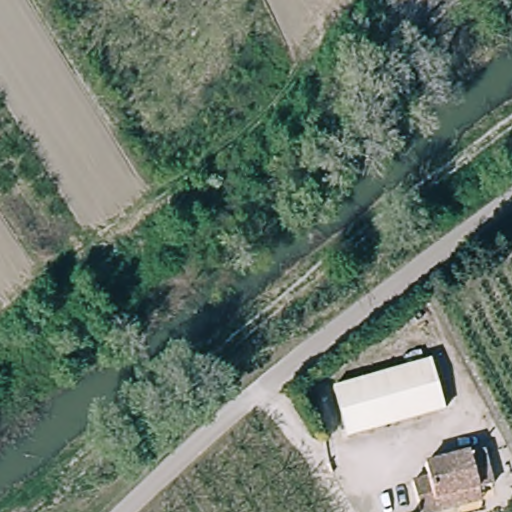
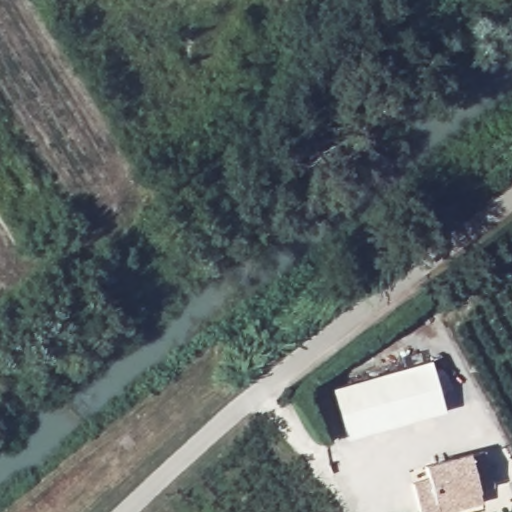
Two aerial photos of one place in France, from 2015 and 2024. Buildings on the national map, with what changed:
unchanged [(361,440),(344,389),(438,359),(455,409),(361,440)]
unchanged [(418,512),(412,492),(424,487),(420,472),(480,455),(490,490),(476,495),(480,507),(463,512),(418,512)]

